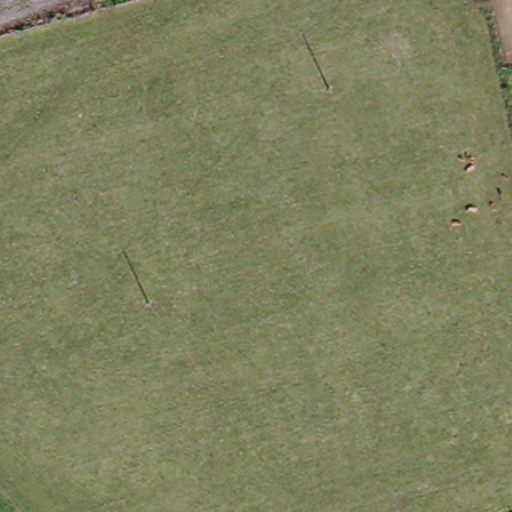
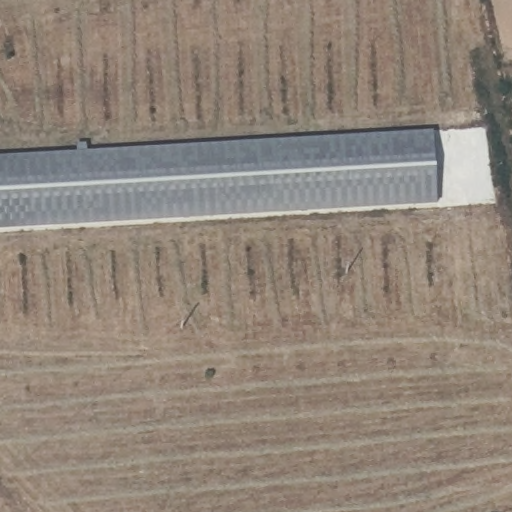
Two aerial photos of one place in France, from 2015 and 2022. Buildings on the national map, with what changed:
new [(437,206),(0,230),(0,159),(432,133),(437,206)]

